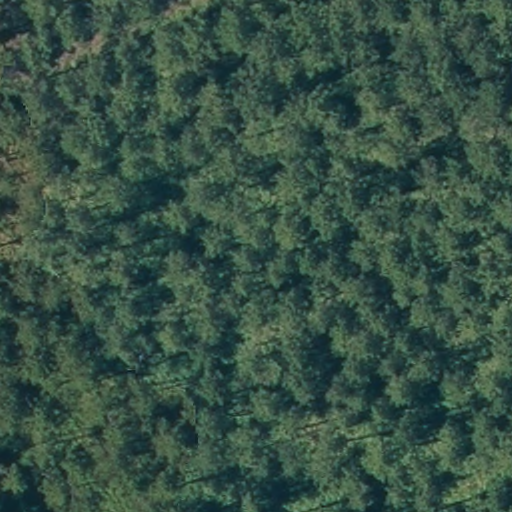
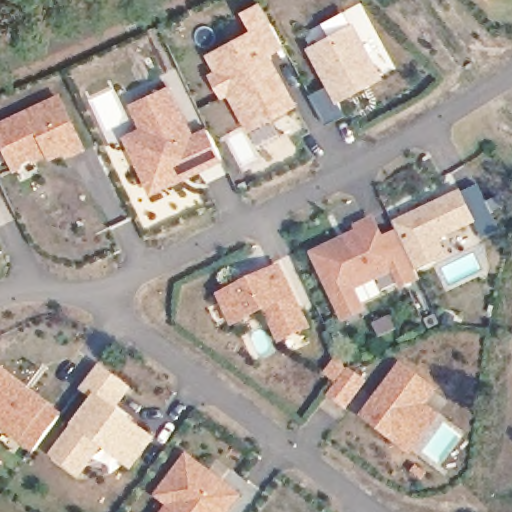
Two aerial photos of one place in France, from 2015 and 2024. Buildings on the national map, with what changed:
new [(301,105),(249,131),(232,94),(223,98),(211,71),(215,69),(208,54),(271,19),(285,48),(273,54),(301,105)]
new [(342,98),(315,48),(357,25),(384,75),(376,79),(366,85),(342,98)]
new [(225,161),(151,194),(124,134),(141,128),(131,103),(172,83),(196,133),(209,126),(225,161)]
new [(87,154),(67,161),(65,154),(49,160),(40,165),(34,160),(25,164),(25,170),(15,174),(0,137),(0,124),(61,94),(87,154)]
new [(394,222),(462,189),(477,223),(441,239),(447,255),(415,270),(420,280),(402,288),(394,273),(358,290),(367,312),(344,323),(310,252),(356,229),(353,225),(374,214),(381,229),(384,234),(397,229),(394,222)]
new [(287,263),(315,323),(287,337),(272,304),(240,319),(227,292),(287,263)]
new [(441,416),(411,456),(359,414),(401,361),(440,389),(428,405),(441,416)]
new [(100,362),(133,389),(116,408),(156,438),(134,471),(105,449),(83,479),(49,456),(72,427),(92,399),(81,389),(100,362)]
new [(0,369),(50,407),(61,416),(32,454),(21,445),(0,429),(0,369)]
new [(167,509),(153,497),(186,455),(241,497),(231,512),(165,512),(167,509)]

